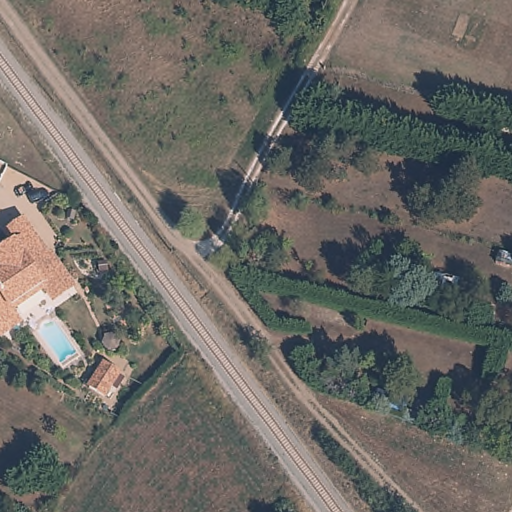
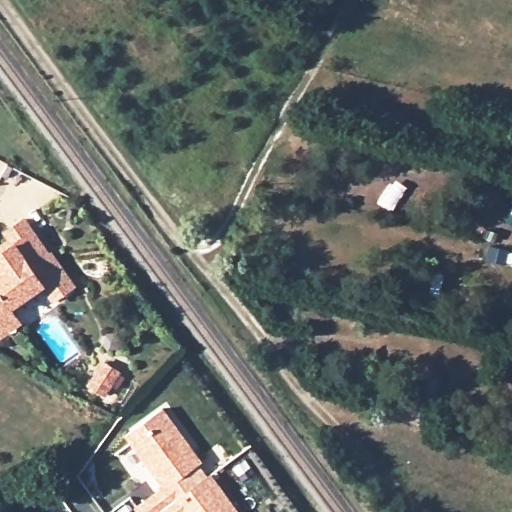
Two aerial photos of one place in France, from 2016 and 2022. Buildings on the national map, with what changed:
unchanged [(0,336),(0,335),(0,245),(4,242),(9,239),(4,231),(22,218),(48,254),(50,252),(68,277),(71,282),(74,285),(54,300),(48,292),(42,284),(10,307),(15,316),(20,322),(0,336)]
unchanged [(456,308),(424,302),(430,272),(461,280),(456,308)]
unchanged [(114,365),(127,371),(112,401),(100,394),(114,365)]
new [(125,436),(163,408),(202,463),(179,480),(186,492),(211,475),(237,512),(137,512),(135,509),(161,489),(125,436)]

